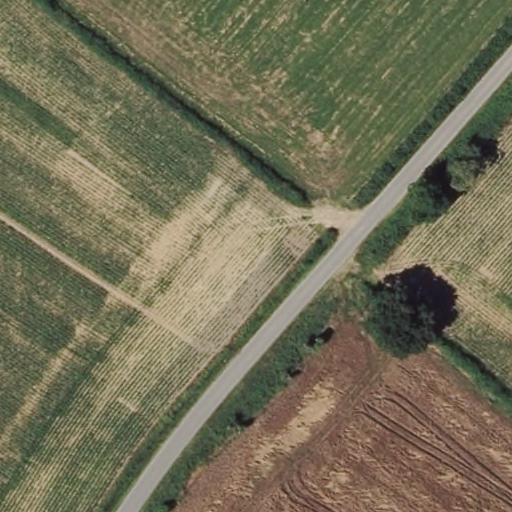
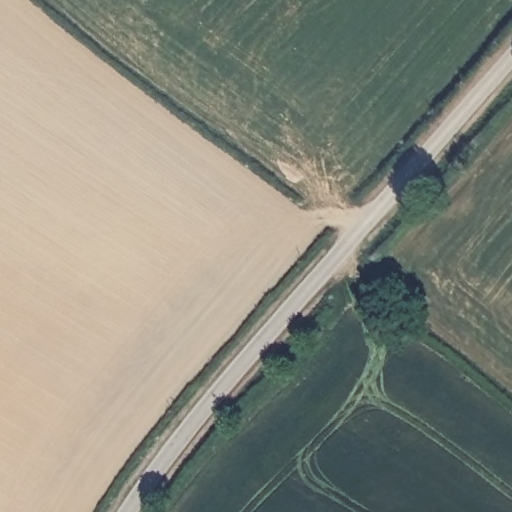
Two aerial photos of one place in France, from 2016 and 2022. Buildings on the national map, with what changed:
[]

